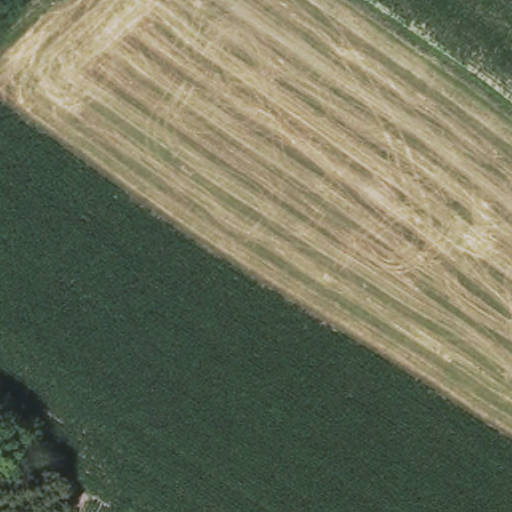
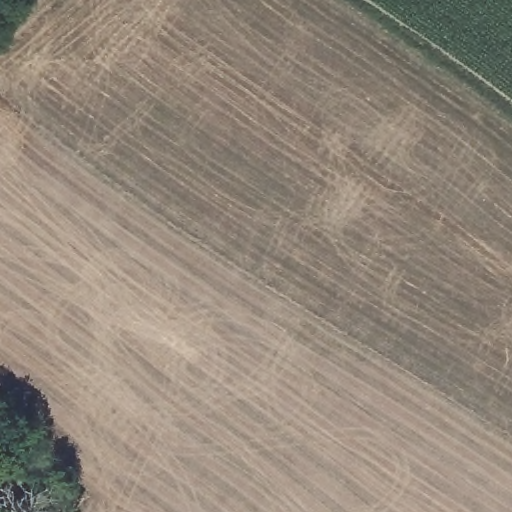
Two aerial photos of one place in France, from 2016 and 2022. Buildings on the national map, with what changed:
unchanged [(30,512),(61,475),(86,497),(75,512),(30,512)]

